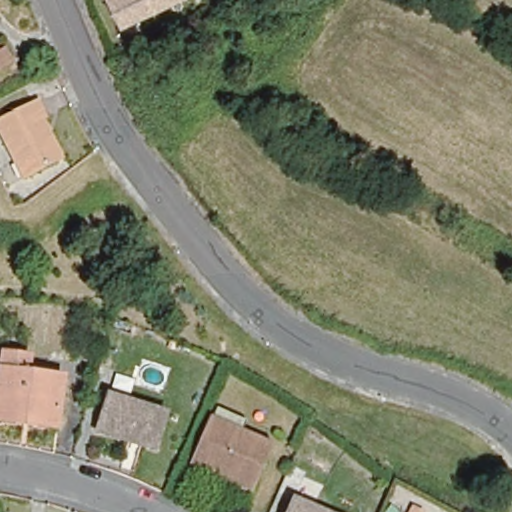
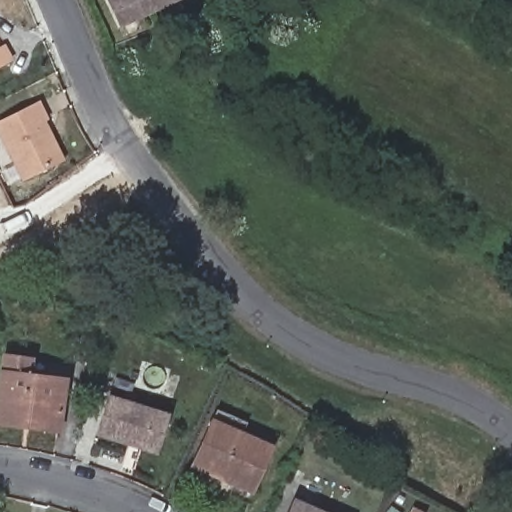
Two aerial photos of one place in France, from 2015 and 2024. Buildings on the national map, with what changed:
unchanged [(124,27),(111,0),(183,0),(157,12),(124,27)]
unchanged [(10,62),(0,68),(0,49),(2,47),(10,62)]
unchanged [(21,179),(0,136),(0,126),(38,107),(45,121),(39,124),(57,161),(51,164),(21,179)]
unchanged [(31,379),(65,384),(60,430),(0,422),(0,407),(6,357),(32,360),(31,379)]
unchanged [(165,413),(155,452),(101,438),(110,398),(165,413)]
unchanged [(223,480),(194,468),(213,424),(217,413),(244,424),(240,436),(267,447),(253,484),(250,491),(223,480)]
unchanged [(321,512),(292,512),(296,501),(321,512)]

